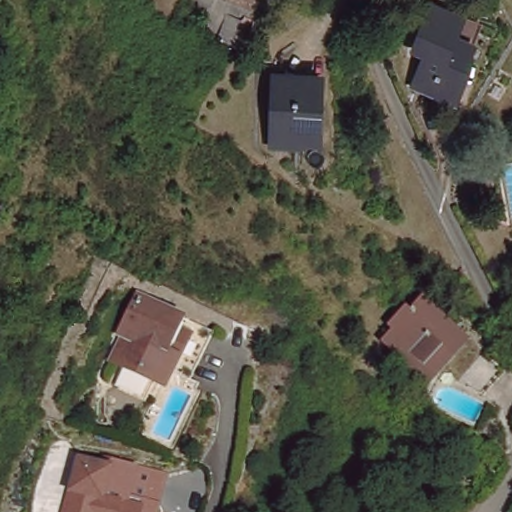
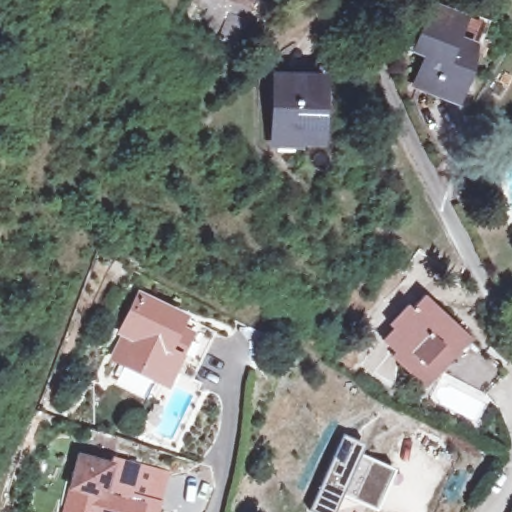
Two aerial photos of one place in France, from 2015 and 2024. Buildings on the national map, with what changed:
unchanged [(260,1),(251,23),(259,28),(249,52),(205,34),(219,0),(258,0),(260,1)]
unchanged [(475,28),(469,45),(465,71),(454,98),(419,85),(431,55),(416,50),(431,12),(475,28)]
unchanged [(289,79),(321,80),(321,96),(320,140),(279,140),(280,79),(289,79)]
unchanged [(410,301),(417,305),(430,289),(451,308),(446,316),(467,335),(420,389),(400,370),(404,366),(391,352),(394,347),(386,341),(399,325),(393,320),(410,301)]
unchanged [(190,335),(179,358),(169,353),(155,382),(117,362),(130,335),(123,331),(138,300),(176,318),(172,326),(190,335)]
unchanged [(483,342),(508,366),(486,390),(461,366),(483,342)]
new [(344,496),(336,512),(317,512),(313,510),(346,437),(365,446),(363,452),(396,470),(377,510),(344,496)]
unchanged [(63,512),(65,504),(78,457),(109,465),(111,460),(165,475),(155,512),(63,512)]

